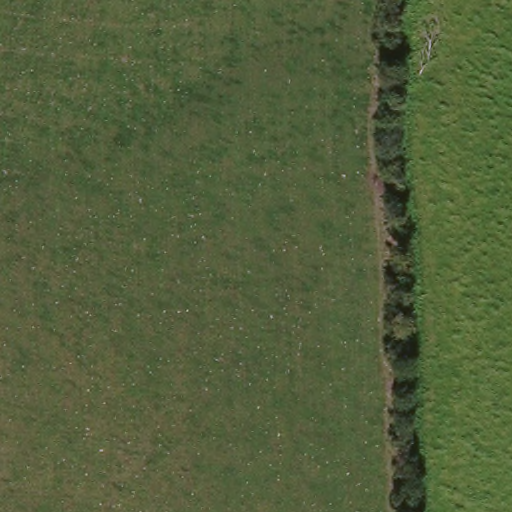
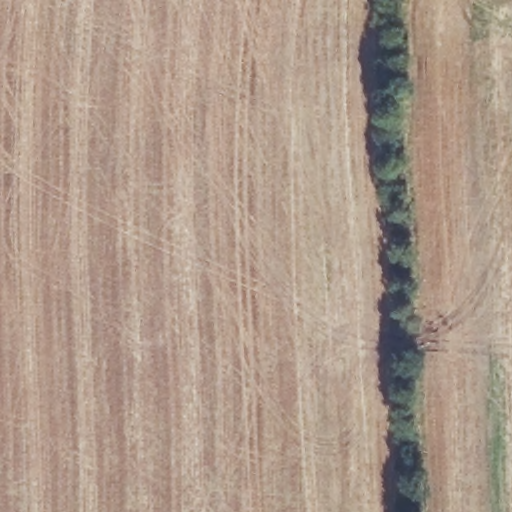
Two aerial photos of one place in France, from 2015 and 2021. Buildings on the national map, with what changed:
[]

